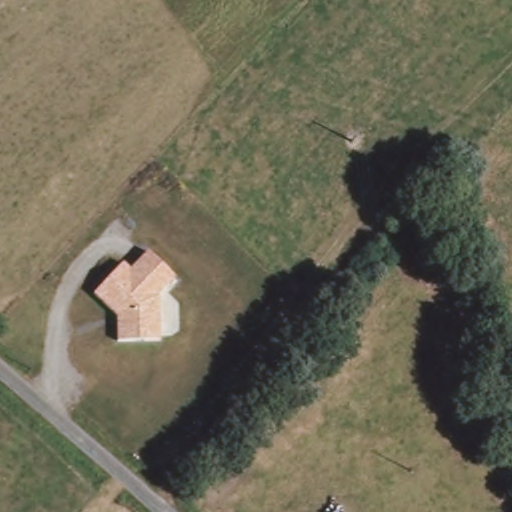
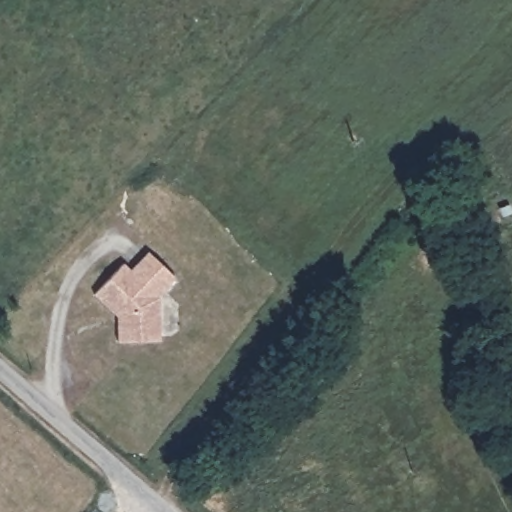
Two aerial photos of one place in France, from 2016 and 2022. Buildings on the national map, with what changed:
unchanged [(122,261),(128,268),(147,250),(175,279),(159,297),(160,342),(116,344),(117,317),(91,296),(122,261)]

